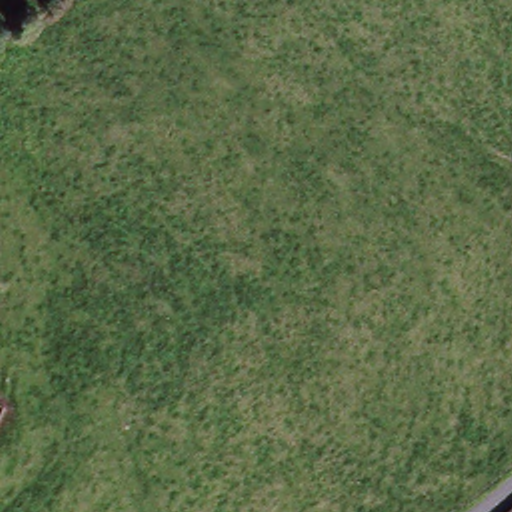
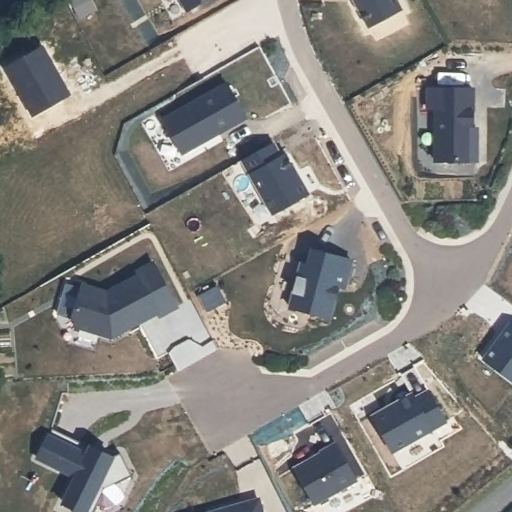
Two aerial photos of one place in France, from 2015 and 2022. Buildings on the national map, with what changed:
new [(179,0),(210,0),(187,14),(179,0)]
new [(367,30),(352,0),(397,0),(403,11),(367,30)]
new [(230,84),(250,119),(185,154),(165,120),(230,84)]
new [(480,142),(480,162),(438,161),(439,109),(432,109),(432,89),(477,89),(476,129),(476,142),(477,129),(480,129),(480,142)]
new [(275,143),(283,157),(288,154),(312,195),(275,215),(245,160),(275,143)]
new [(347,289),(341,288),(332,319),(293,308),(305,264),(310,266),(315,250),(355,262),(347,289)]
new [(150,265),(176,308),(159,318),(133,276),(150,265)]
new [(82,289),(110,295),(135,279),(157,314),(120,338),(73,324),(82,289)]
new [(373,421),(416,397),(419,402),(435,392),(453,424),(394,457),(373,421)]
new [(83,454),(87,445),(109,456),(122,452),(130,477),(108,484),(94,512),(86,512),(60,501),(72,477),(38,460),(50,437),(83,454)]
new [(295,468),(325,451),(325,450),(340,441),(360,478),(315,504),(295,468)]
new [(260,498),(264,512),(213,512),(260,498)]

